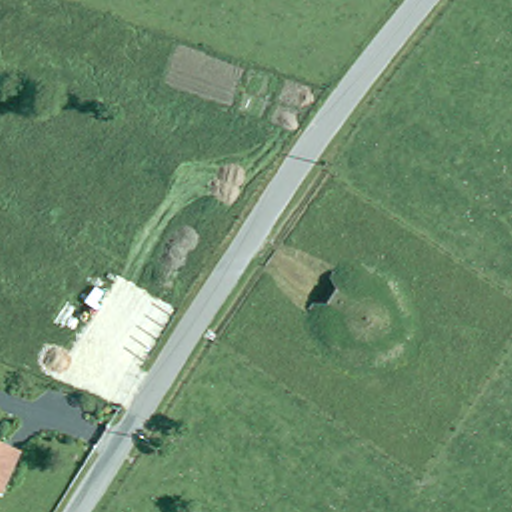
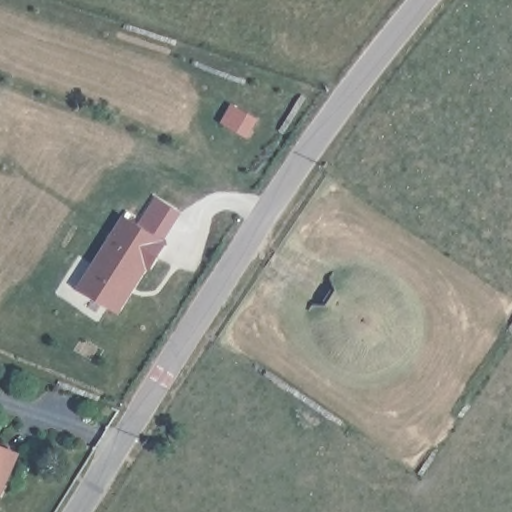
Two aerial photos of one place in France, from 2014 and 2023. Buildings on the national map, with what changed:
new [(120,313),(78,287),(123,215),(168,242),(152,271),(146,267),(120,313)]
unchanged [(0,443),(5,445),(20,452),(13,467),(3,491),(0,489),(0,443)]

